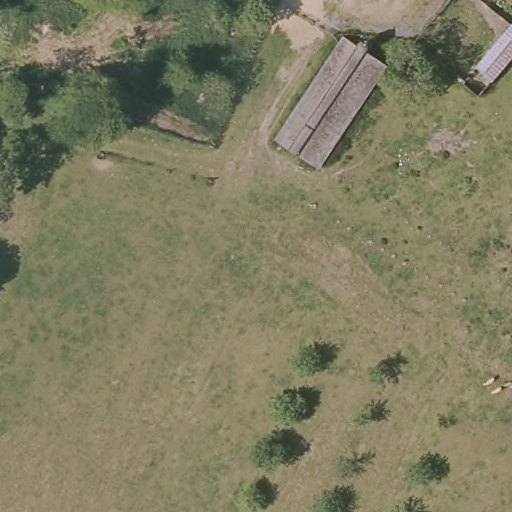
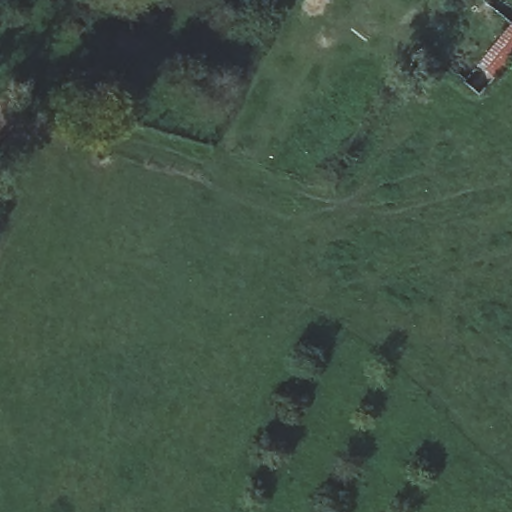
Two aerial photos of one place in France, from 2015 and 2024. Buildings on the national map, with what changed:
unchanged [(512,55),(485,86),(470,73),(512,22),(512,55)]
demolished [(277,140),(343,40),(387,70),(330,168),(277,140)]

